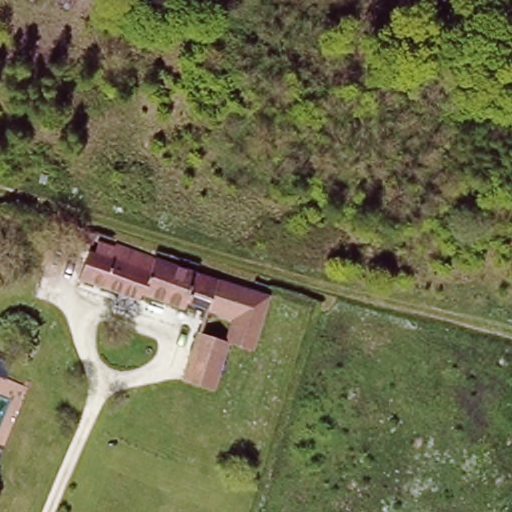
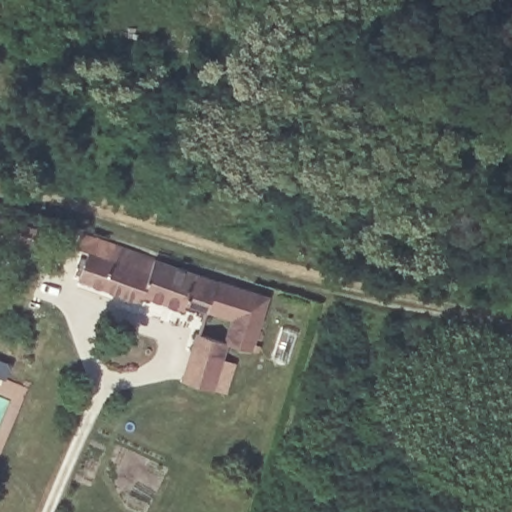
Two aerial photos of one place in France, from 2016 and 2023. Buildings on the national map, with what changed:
unchanged [(195,330),(226,341),(232,318),(144,298),(142,307),(79,288),(93,235),(156,256),(271,296),(254,356),(227,348),(214,394),(182,385),(195,330)]

